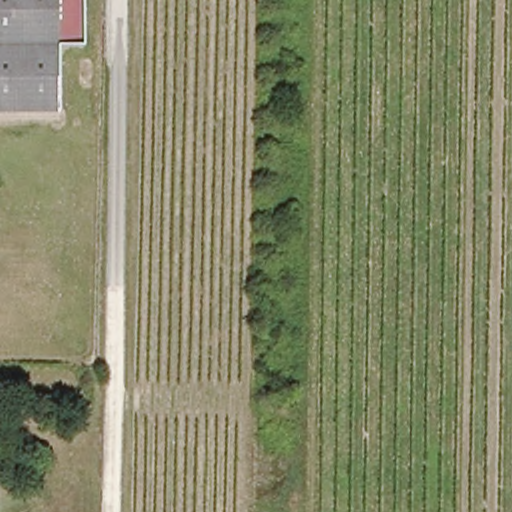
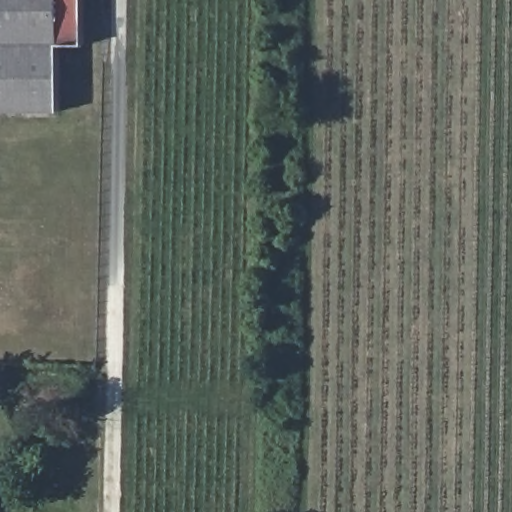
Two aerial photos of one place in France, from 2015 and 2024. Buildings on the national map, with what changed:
unchanged [(0,113),(0,0),(83,0),(84,45),(59,45),(59,112),(0,113)]

